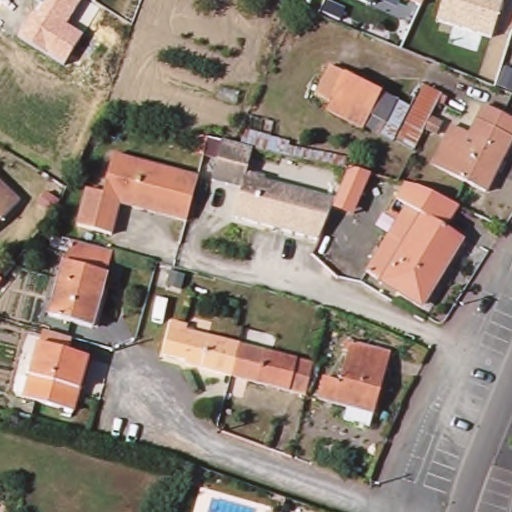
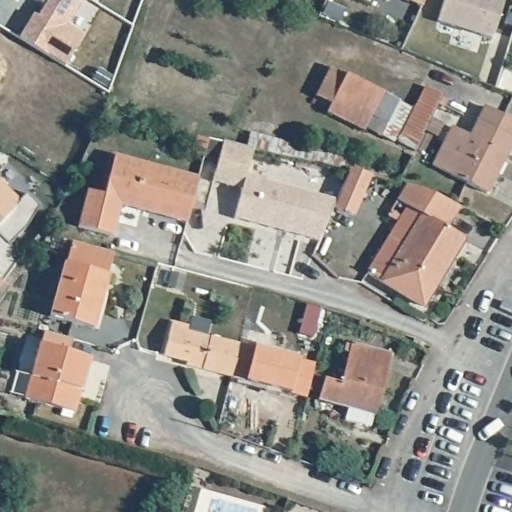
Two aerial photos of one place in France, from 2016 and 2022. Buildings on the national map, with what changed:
unchanged [(85,33),(66,67),(18,38),(41,1),(38,0),(83,0),(69,23),(85,33)]
unchanged [(369,0),(372,0),(371,1),(369,0)]
unchanged [(409,0),(425,0),(422,5),(409,0)]
unchanged [(437,19),(443,0),(505,0),(493,38),(437,19)]
unchanged [(511,31),(512,27),(512,32),(511,31)]
unchanged [(358,129),(322,111),(326,102),(311,93),(327,67),(341,75),(377,94),(358,129)]
unchanged [(445,95),(433,116),(442,121),(436,137),(427,133),(418,151),(395,140),(392,143),(358,129),(377,94),(410,108),(425,84),(445,95)]
unchanged [(454,125),(471,135),(463,150),(487,108),(512,122),(512,144),(485,193),(432,166),(446,142),(454,125)]
unchanged [(352,219),(332,212),(316,247),(230,218),(239,189),(209,182),(220,142),(252,149),(246,173),(336,199),(346,172),(367,179),(352,219)]
unchanged [(82,190),(100,195),(104,184),(110,157),(193,178),(182,222),(120,207),(113,235),(74,225),(82,190)]
unchanged [(450,235),(462,241),(426,311),(368,280),(401,215),(391,211),(396,199),(406,178),(462,208),(457,219),(450,235)]
unchanged [(62,207),(49,198),(57,185),(71,194),(62,207)]
unchanged [(0,215),(0,188),(13,201),(0,215)]
unchanged [(96,321),(54,311),(72,244),(113,255),(96,321)]
unchanged [(0,271),(12,276),(1,294),(0,293),(0,271)]
unchanged [(72,410),(25,397),(42,342),(46,328),(61,332),(72,335),(68,349),(90,356),(72,410)]
unchanged [(193,368),(164,359),(171,329),(233,345),(225,377),(193,368)]
unchanged [(311,366),(302,397),(225,377),(233,345),(311,366)]
unchanged [(322,384),(336,388),(348,345),(387,355),(372,418),(316,404),(322,384)]

